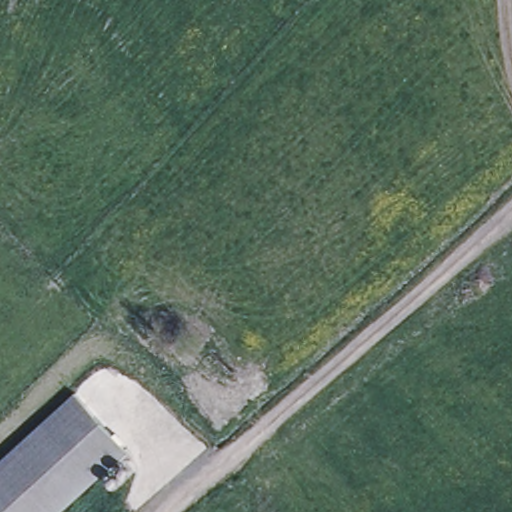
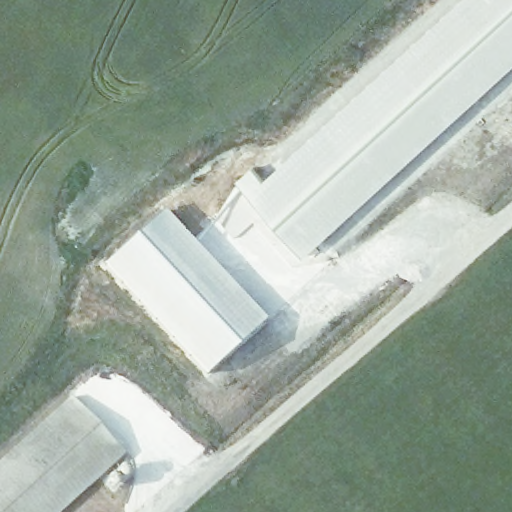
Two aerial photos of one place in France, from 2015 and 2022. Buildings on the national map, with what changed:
new [(237,182),(251,168),(263,182),(463,0),(512,0),(512,67),(304,257),(237,182)]
new [(265,321),(205,376),(103,264),(163,209),(265,321)]
unchanged [(122,449),(53,512),(0,512),(0,459),(72,394),(122,449)]

